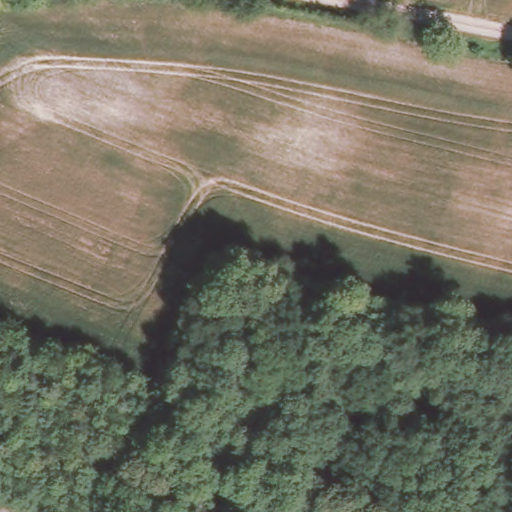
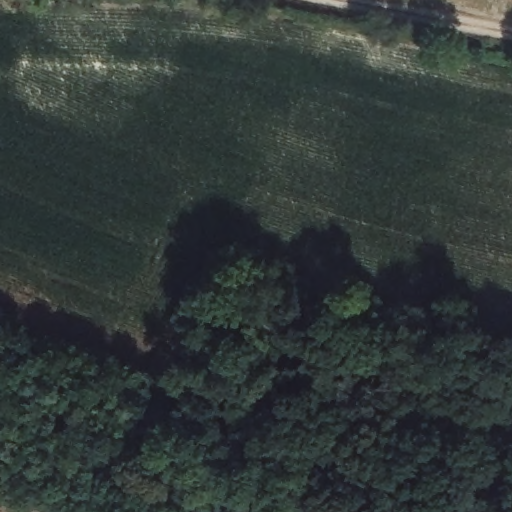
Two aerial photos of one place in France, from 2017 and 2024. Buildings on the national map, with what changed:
unchanged [(247,505),(245,512),(224,512),(228,500),(247,505)]

